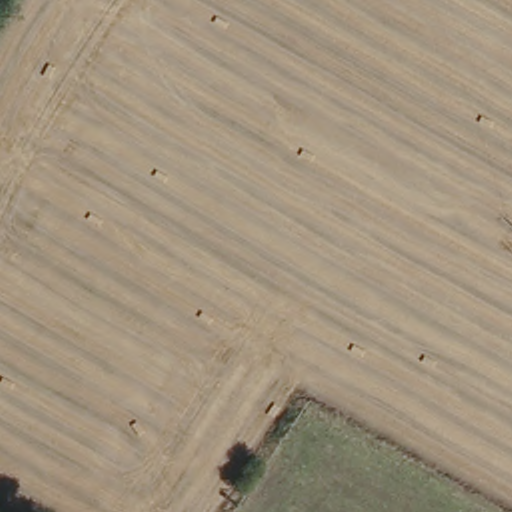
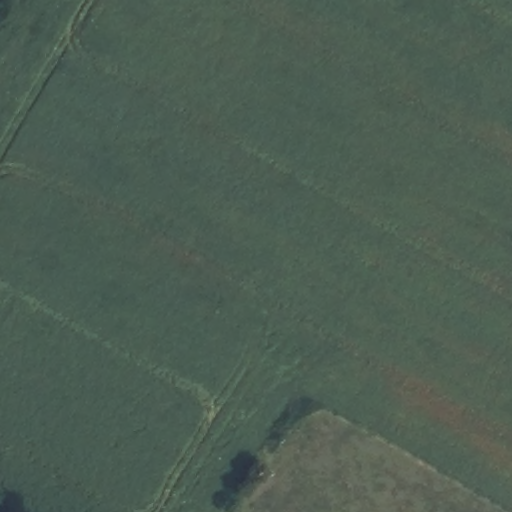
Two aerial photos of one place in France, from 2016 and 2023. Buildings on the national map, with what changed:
[]

